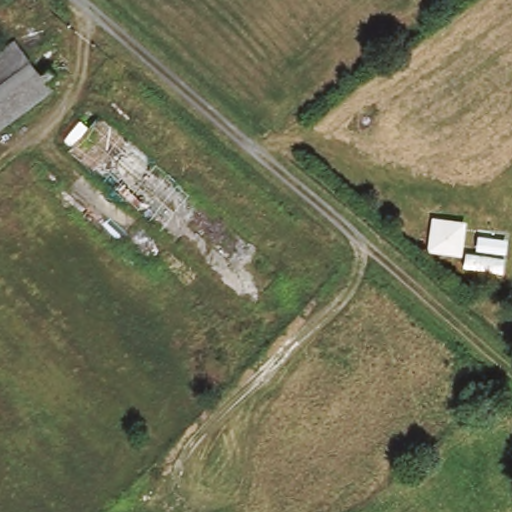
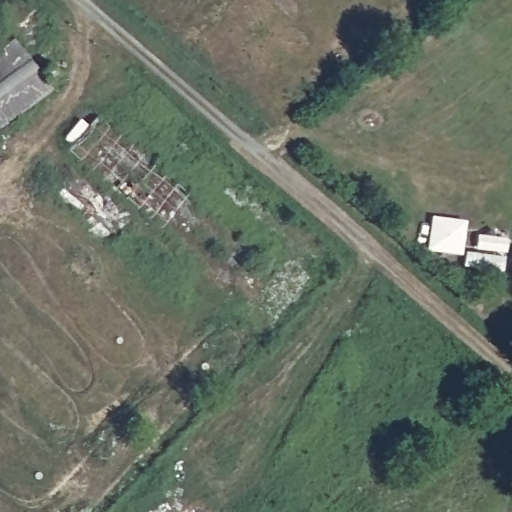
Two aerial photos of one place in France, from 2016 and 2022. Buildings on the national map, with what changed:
unchanged [(15,41),(20,48),(49,89),(0,127),(0,52),(2,50),(15,41)]

